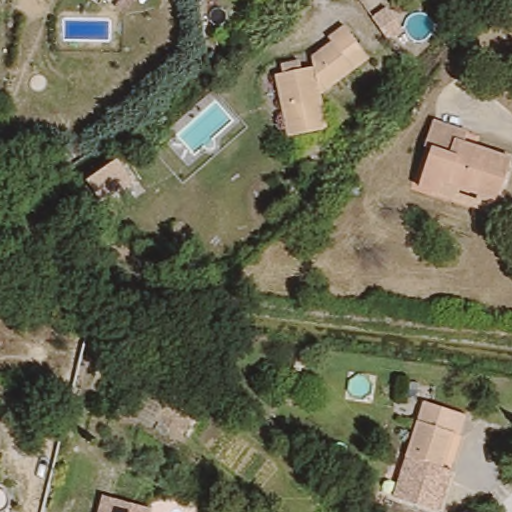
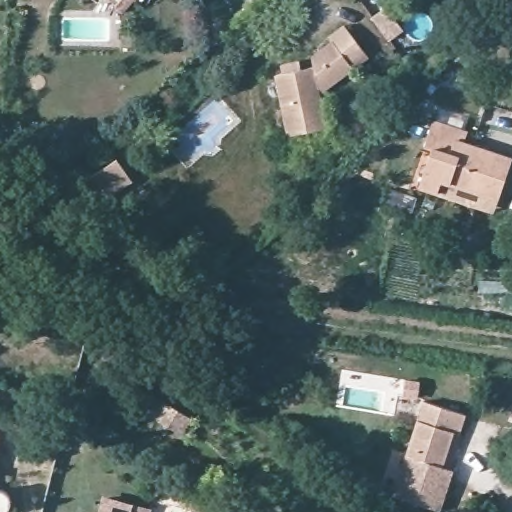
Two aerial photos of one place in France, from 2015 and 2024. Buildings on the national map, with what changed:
unchanged [(137,8),(129,0),(144,0),(137,8)]
unchanged [(301,150),(298,137),(294,139),(293,134),(284,136),(276,105),(272,106),(268,87),(281,85),(279,79),(286,77),(284,70),(304,65),(305,71),(317,69),(314,59),(334,41),(331,36),(343,26),(370,56),(324,96),(331,129),(328,130),(331,142),(301,150)]
unchanged [(439,192),(420,186),(432,149),(426,147),(434,120),(467,132),(464,142),(512,157),(499,200),(495,211),(439,192)]
unchanged [(143,166),(161,186),(133,211),(115,191),(143,166)]
unchanged [(463,416),(454,450),(460,452),(442,512),(433,512),(393,499),(420,404),(463,416)]
unchanged [(183,438),(158,423),(169,405),(194,420),(183,438)]
unchanged [(6,493),(8,495),(10,497),(11,500),(11,503),(9,508),(8,511),(6,512),(0,512),(0,491),(3,491),(6,493)]
unchanged [(148,512),(102,512),(106,500),(149,510),(148,512)]

